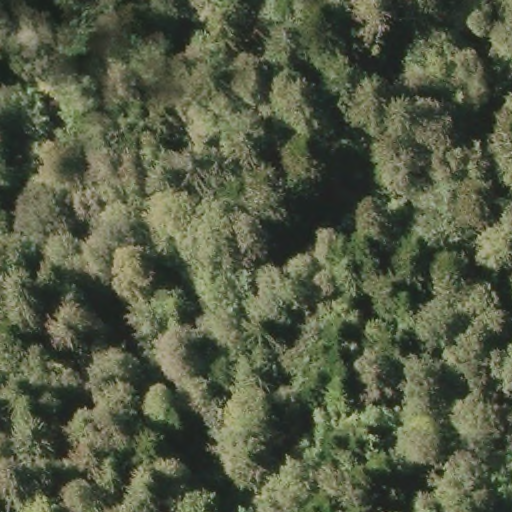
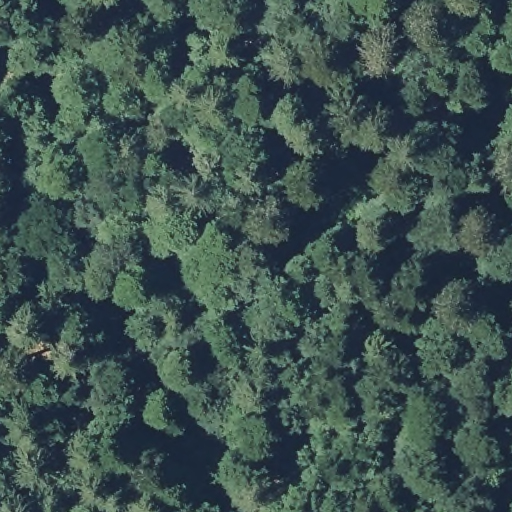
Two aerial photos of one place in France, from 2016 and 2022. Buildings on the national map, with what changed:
[]

